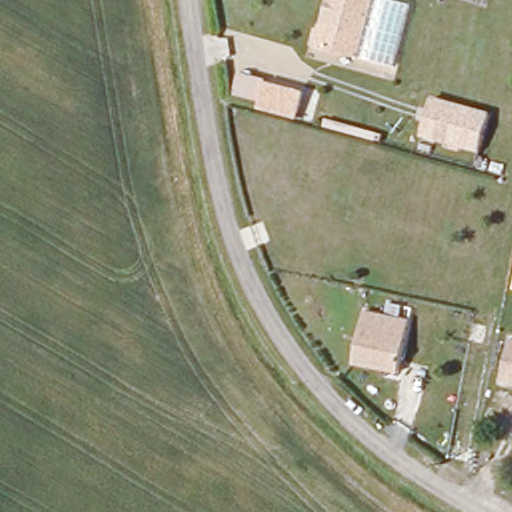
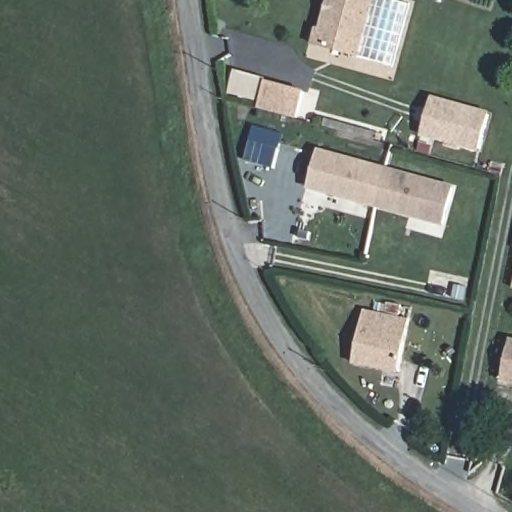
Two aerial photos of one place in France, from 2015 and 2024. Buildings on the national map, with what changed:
unchanged [(360,63),(313,51),(326,0),(376,0),(360,63)]
unchanged [(264,86),(303,95),(298,124),(258,115),(264,86)]
unchanged [(432,101),(491,115),(484,150),(424,136),(432,101)]
new [(445,226),(308,189),(319,150),(456,185),(445,226)]
unchanged [(397,375),(352,363),(362,313),(382,318),(384,307),(397,309),(396,321),(408,326),(397,375)]
unchanged [(512,332),(512,375),(506,373),(511,331),(512,332)]

